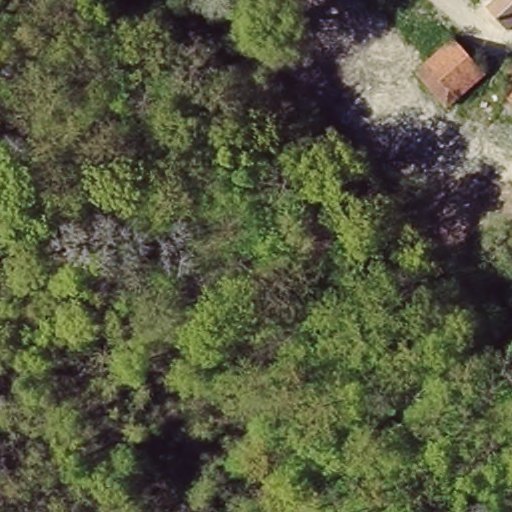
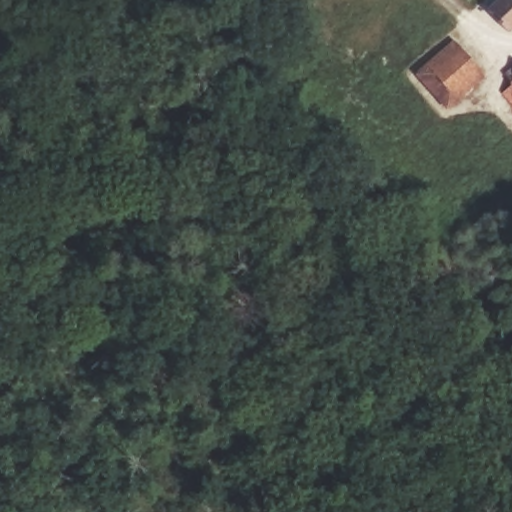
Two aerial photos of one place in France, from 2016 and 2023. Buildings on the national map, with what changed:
unchanged [(489,9),(500,0),(512,0),(512,26),(507,30),(489,9)]
unchanged [(424,67),(452,42),(482,82),(451,102),(424,67)]
unchanged [(512,68),(512,70),(511,69),(512,68)]
unchanged [(512,81),(512,102),(501,88),(512,81)]

